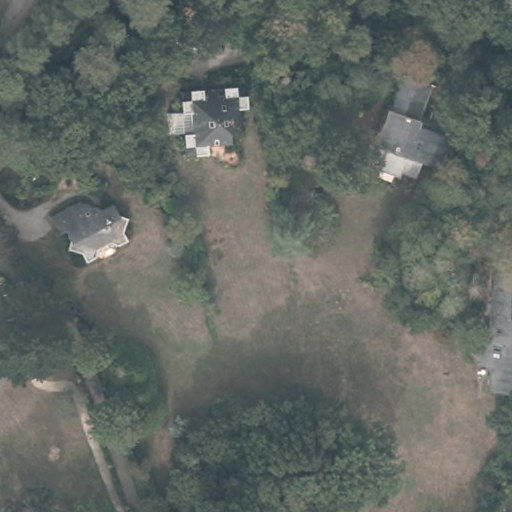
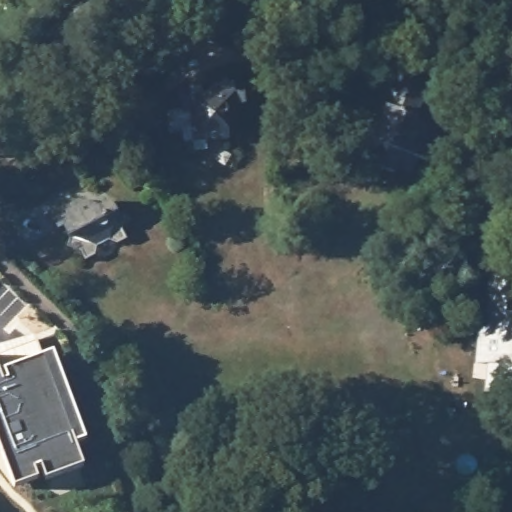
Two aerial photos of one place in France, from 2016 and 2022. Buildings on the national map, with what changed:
unchanged [(390,102),(404,69),(433,82),(420,115),(390,102)]
unchanged [(166,124),(179,123),(177,101),(242,96),(245,119),(236,119),(237,142),(227,142),(227,155),(206,156),(206,165),(182,166),(181,145),(168,145),(166,124)]
unchanged [(429,119),(433,108),(455,116),(448,131),(456,135),(450,149),(447,148),(441,162),(423,155),(416,171),(403,166),(400,171),(377,161),(371,177),(358,172),(357,167),(370,136),(375,139),(390,102),(420,115),(429,119)]
unchanged [(92,199),(105,193),(111,205),(120,207),(117,222),(120,232),(115,235),(105,233),(94,237),(90,249),(79,253),(74,241),(58,239),(64,230),(58,219),(51,222),(44,206),(73,192),(92,199)]
unchanged [(486,365),(488,340),(476,338),(478,306),(484,306),(490,245),(512,247),(512,367),(486,365)]
new [(0,347),(37,336),(45,357),(53,353),(84,440),(75,443),(84,467),(45,481),(41,468),(34,470),(37,480),(13,488),(0,471),(0,347)]

